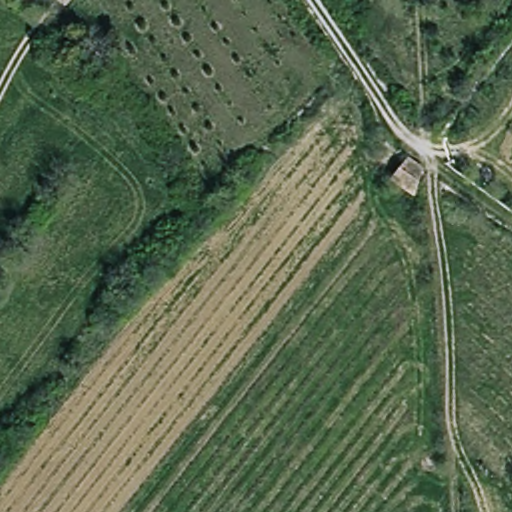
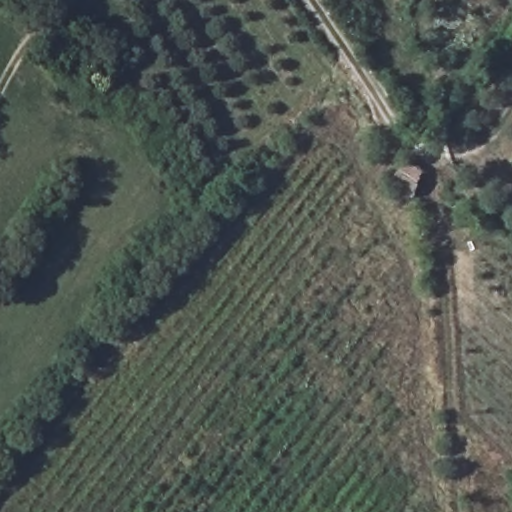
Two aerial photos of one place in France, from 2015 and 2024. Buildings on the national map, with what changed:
unchanged [(102,60),(90,78),(68,62),(80,44),(102,60)]
unchanged [(414,200),(391,184),(407,164),(423,175),(423,180),(414,200)]

